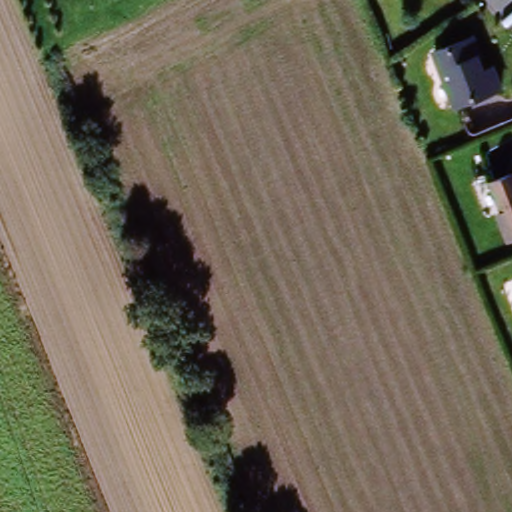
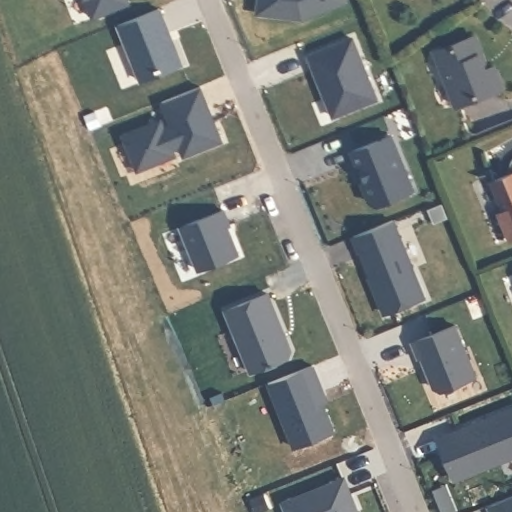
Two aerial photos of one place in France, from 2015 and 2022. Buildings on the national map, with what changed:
new [(130,3),(94,17),(88,0),(129,0),(130,3)]
new [(160,9),(183,65),(141,82),(119,26),(160,9)]
unchanged [(481,55),(486,69),(495,66),(503,87),(457,104),(436,49),(475,35),(483,55),(481,55)]
new [(334,117),(310,57),(354,39),(378,100),(334,117)]
new [(222,142),(185,157),(181,147),(173,150),(175,156),(138,171),(123,136),(161,121),(164,130),(173,126),(163,103),(200,88),(222,142)]
new [(416,191),(379,206),(371,203),(363,182),(367,181),(363,170),(361,171),(353,152),(393,136),(416,191)]
unchanged [(493,180),(512,172),(512,237),(499,210),(504,208),(493,180)]
new [(394,221),(426,299),(387,315),(362,253),(361,254),(354,238),(394,221)]
new [(268,296),(291,353),(288,360),(251,375),(226,313),(268,296)]
new [(329,404),(324,406),(314,383),(334,433),(295,449),(269,384),(314,366),(319,381),(329,404)]
new [(345,480),(353,499),(358,512),(286,512),(284,505),(345,480)]
new [(491,512),(489,508),(512,498),(512,512),(491,512)]

